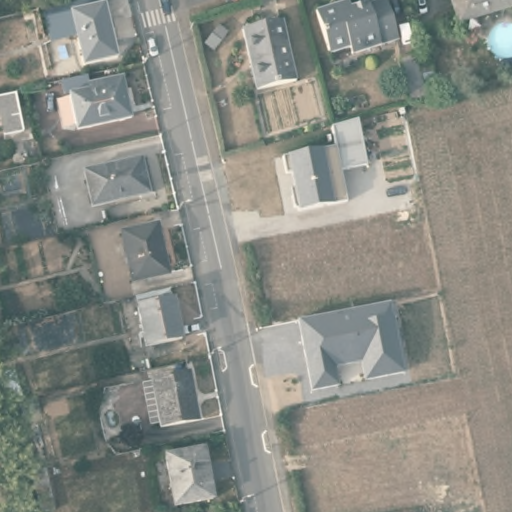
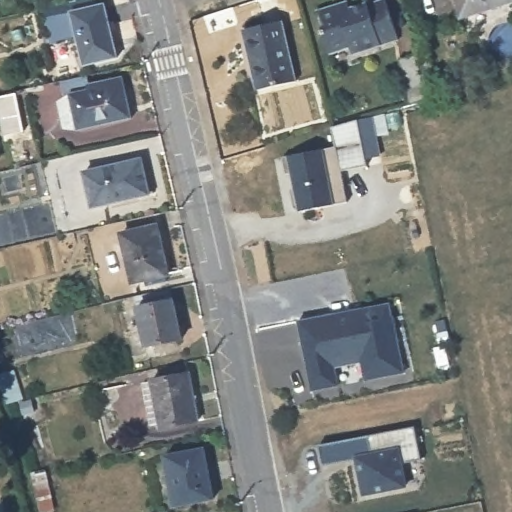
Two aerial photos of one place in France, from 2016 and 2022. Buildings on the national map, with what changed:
unchanged [(454,0),(512,0),(512,4),(460,20),(454,0)]
unchanged [(84,62),(71,8),(105,1),(117,55),(84,62)]
unchanged [(356,56),(355,48),(332,54),(319,12),(343,5),(346,13),(372,5),(373,7),(391,2),(403,43),(356,56)]
unchanged [(262,90),(245,27),(285,17),(302,80),(262,90)]
unchanged [(399,83),(391,54),(411,49),(418,77),(399,83)]
unchanged [(77,127),(70,92),(122,79),(131,114),(77,127)]
unchanged [(18,91),(27,129),(5,134),(0,114),(0,95),(18,91)]
unchanged [(340,171),(345,200),(295,209),(290,189),(295,188),(290,174),(287,174),(283,157),(334,146),(331,127),(358,119),(367,166),(340,171)]
unchanged [(152,197),(95,209),(86,172),(144,158),(152,197)]
unchanged [(156,222),(167,270),(135,277),(122,231),(156,222)]
unchanged [(169,301),(177,338),(142,346),(134,307),(169,301)]
unchanged [(403,375),(366,382),(362,363),(336,368),(340,388),(310,393),(297,321),(387,303),(403,375)]
unchanged [(184,372),(194,419),(156,427),(147,380),(184,372)]
new [(413,423),(420,457),(400,461),(403,483),(362,492),(356,457),(321,463),(317,442),(413,423)]
unchanged [(160,456),(199,448),(209,498),(170,507),(160,456)]

